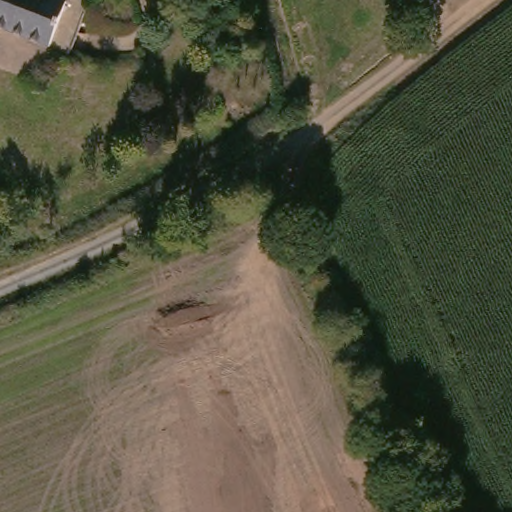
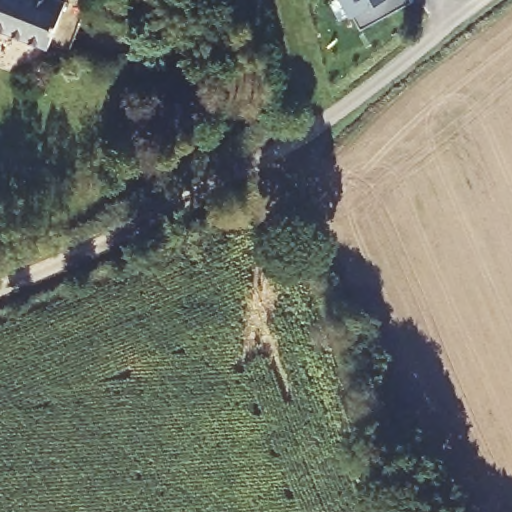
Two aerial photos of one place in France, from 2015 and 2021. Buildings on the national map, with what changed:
unchanged [(70,0),(55,44),(0,26),(0,0),(70,0)]
new [(357,34),(339,0),(407,0),(410,5),(357,34)]

